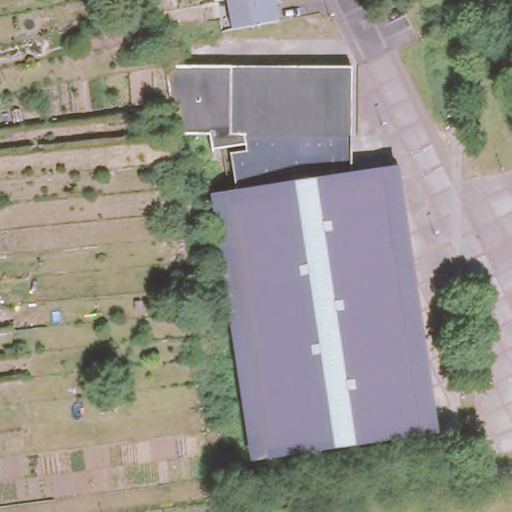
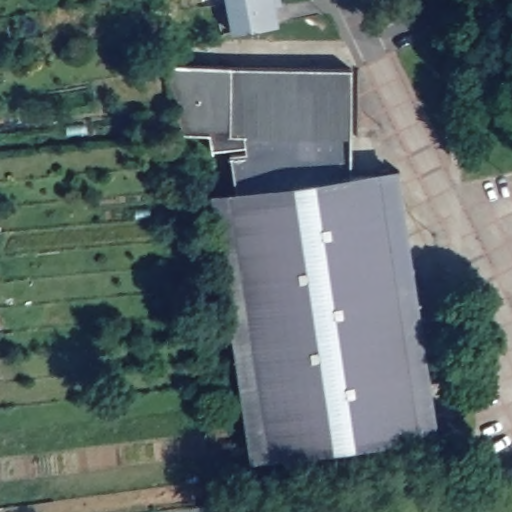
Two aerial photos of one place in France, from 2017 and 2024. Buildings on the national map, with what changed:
unchanged [(229,30),(224,0),(275,0),(279,21),(229,30)]
unchanged [(235,66),(235,133),(248,133),(250,149),(235,153),(242,204),(237,205),(273,448),(240,452),(207,191),(232,190),(222,142),(207,143),(206,131),(172,136),(160,62),(235,66)]
unchanged [(237,205),(242,204),(235,153),(250,149),(248,133),(235,133),(235,66),(267,66),(355,67),(354,134),(346,134),(345,174),(403,174),(406,269),(418,268),(420,357),(414,359),(425,425),(330,439),(273,448),(237,205)]

